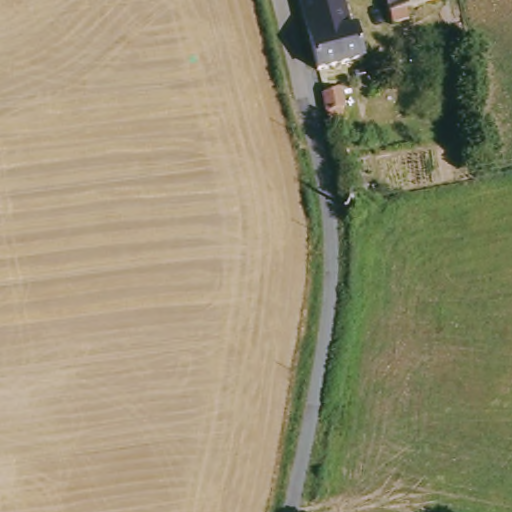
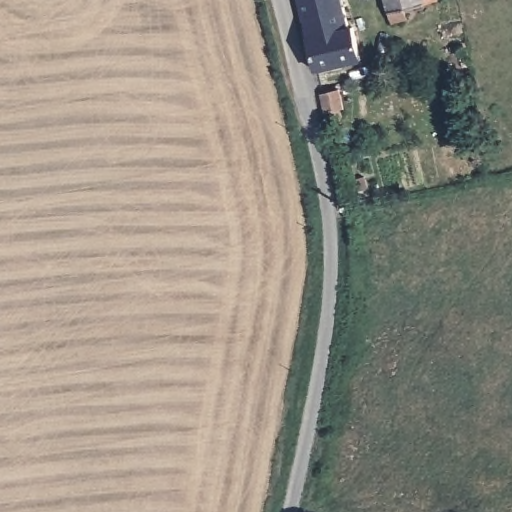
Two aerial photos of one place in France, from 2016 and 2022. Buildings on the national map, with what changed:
unchanged [(360,61),(316,71),(297,0),(345,0),(360,61)]
unchanged [(408,15),(389,20),(384,0),(405,0),(408,15)]
unchanged [(340,80),(350,114),(330,119),(321,85),(340,80)]

